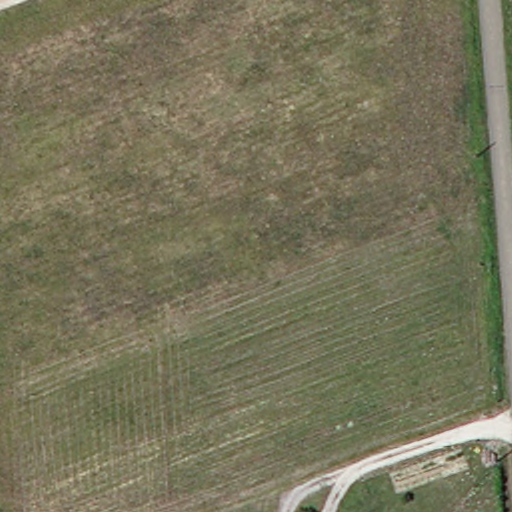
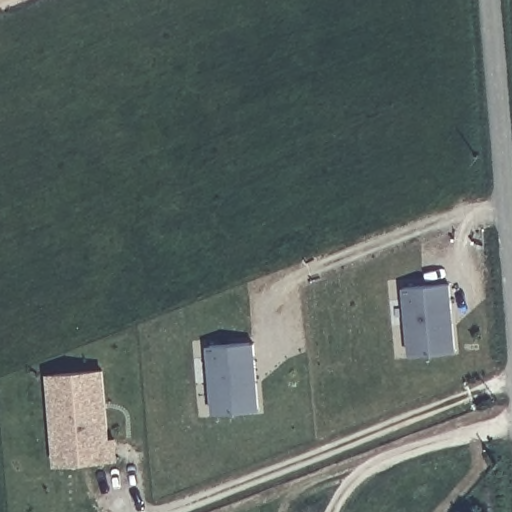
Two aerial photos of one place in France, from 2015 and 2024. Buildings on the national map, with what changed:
new [(451,351),(406,355),(401,286),(445,282),(451,351)]
new [(207,417),(202,348),(247,345),(249,375),(250,385),(252,413),(207,417)]
new [(110,438),(116,437),(119,461),(54,465),(46,373),(105,369),(110,438)]

